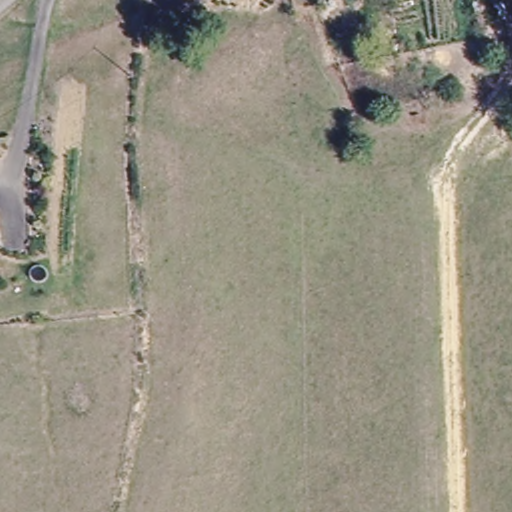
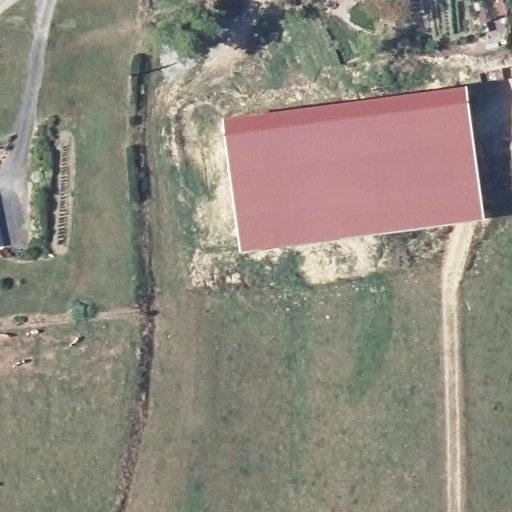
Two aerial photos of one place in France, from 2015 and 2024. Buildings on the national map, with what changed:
new [(265,113),(307,110),(469,89),(487,222),(314,245),(243,257),(225,119),(265,113)]

